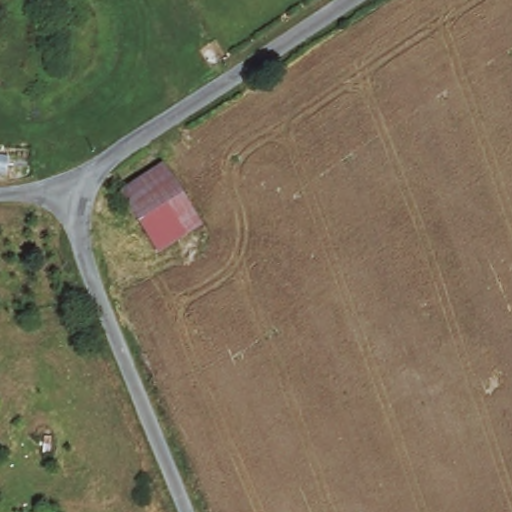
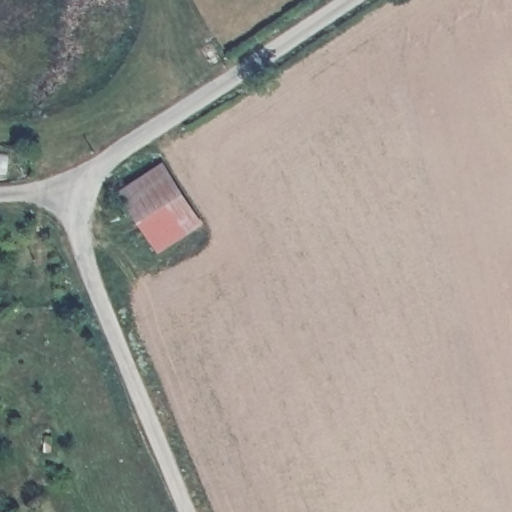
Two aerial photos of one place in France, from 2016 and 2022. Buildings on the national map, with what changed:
unchanged [(197,225),(155,249),(119,190),(161,165),(197,225)]

